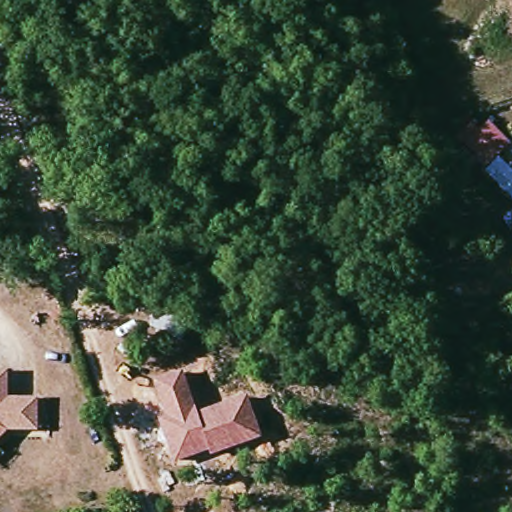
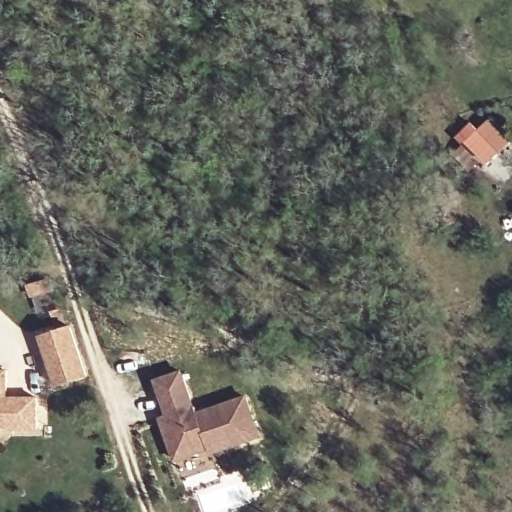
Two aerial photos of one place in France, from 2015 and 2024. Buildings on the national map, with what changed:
unchanged [(512,141),(483,169),(455,139),(472,122),(479,129),(489,118),(512,141)]
new [(88,378),(55,389),(38,337),(71,326),(88,378)]
unchanged [(8,369),(8,396),(34,396),(35,425),(6,427),(0,434),(0,369),(8,369)]
unchanged [(198,412),(247,396),(262,437),(211,456),(209,450),(174,462),(158,418),(166,416),(154,380),(183,371),(198,412)]

